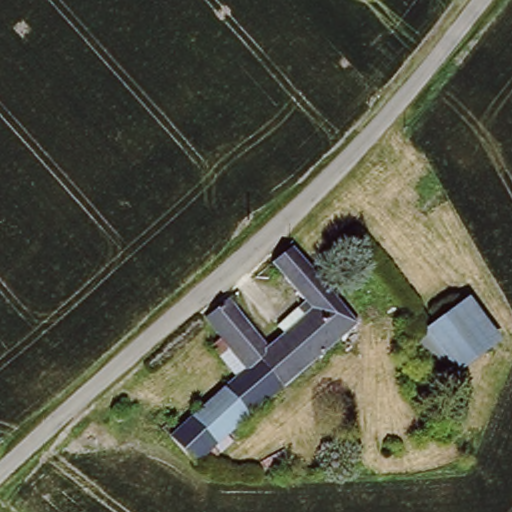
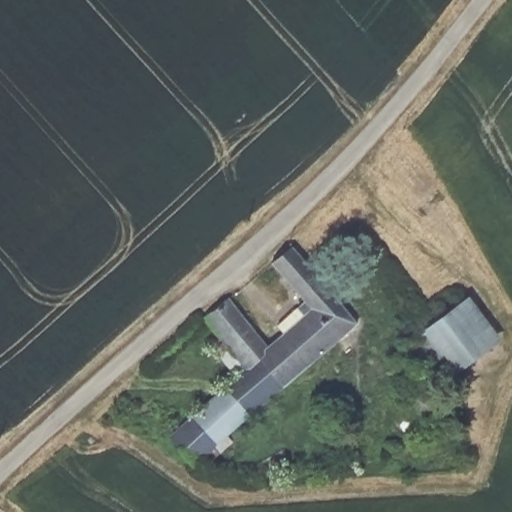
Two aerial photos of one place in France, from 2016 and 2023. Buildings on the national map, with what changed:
unchanged [(364,324),(198,465),(167,432),(244,370),(201,319),(235,297),(261,335),(307,304),(266,260),(289,243),(364,324)]
unchanged [(454,312),(465,301),(501,339),(489,351),(455,379),(422,341),(454,312)]

